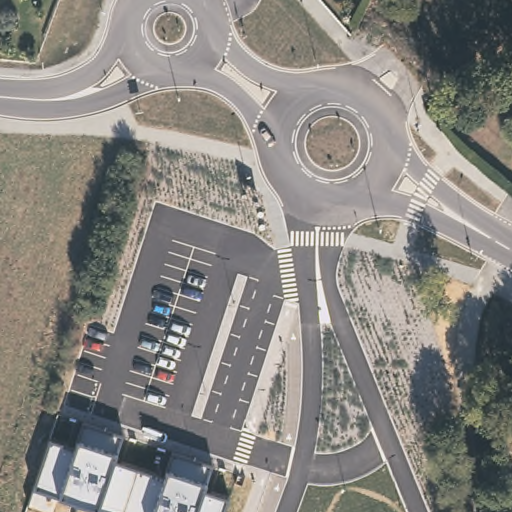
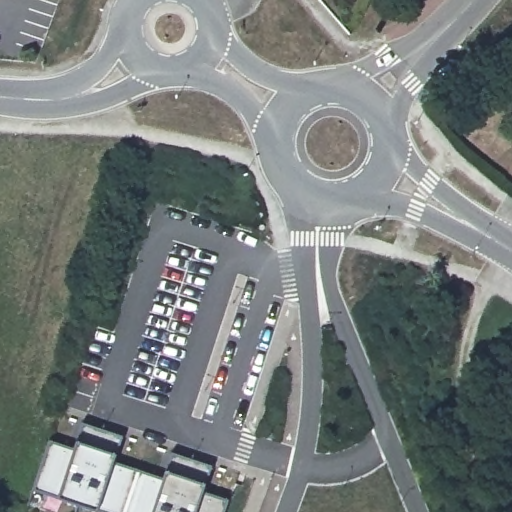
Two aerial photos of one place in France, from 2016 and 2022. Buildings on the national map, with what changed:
unchanged [(106,512),(98,509),(61,498),(37,489),(52,443),(76,452),(79,441),(85,425),(121,436),(115,452),(111,466),(165,482),(168,470),(172,455),(210,466),(206,482),(201,495),(227,499),(223,512),(106,512)]

